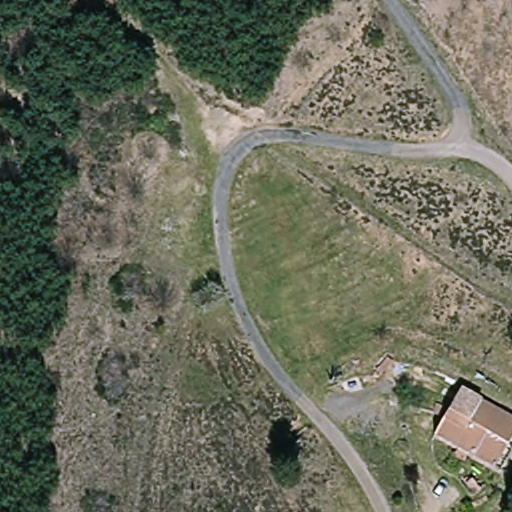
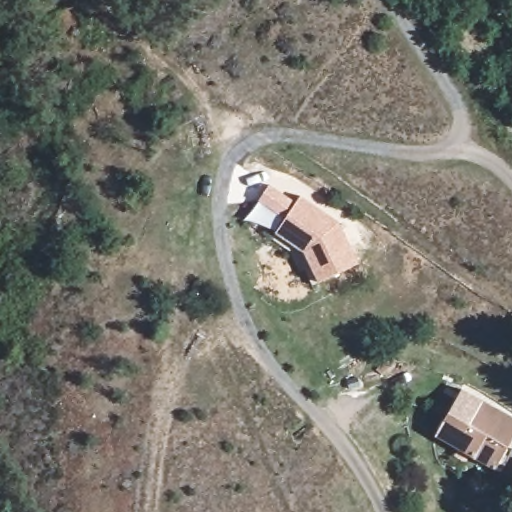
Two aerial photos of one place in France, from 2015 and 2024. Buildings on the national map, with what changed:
new [(275,232),(285,219),(256,200),(268,183),(295,202),(300,195),(338,221),(358,262),(317,283),(303,252),(275,232)]
unchanged [(512,441),(512,455),(506,466),(435,431),(457,386),(512,414),(512,429),(507,439),(512,441)]

